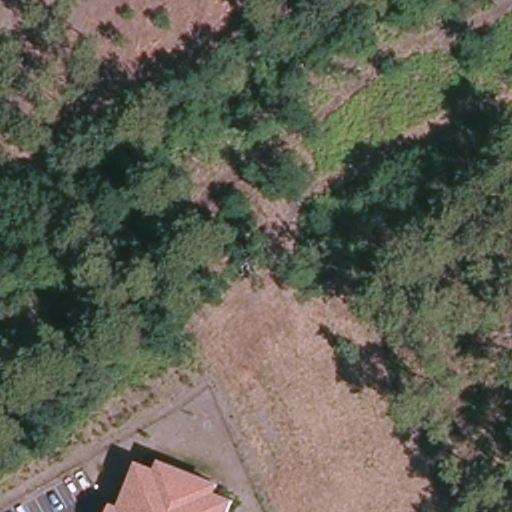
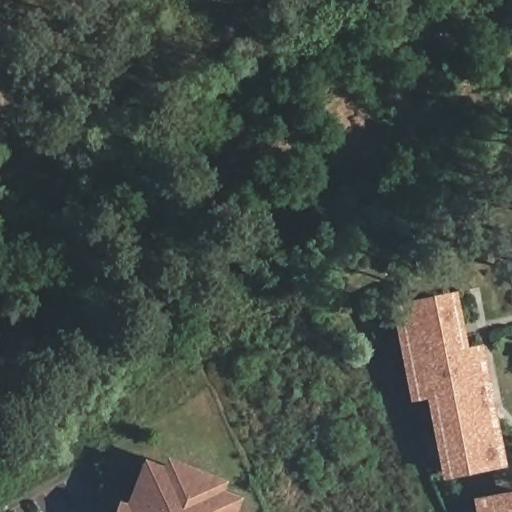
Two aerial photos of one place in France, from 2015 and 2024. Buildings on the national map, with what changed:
new [(452,292),(462,348),(480,345),(504,467),(437,479),(422,399),(407,402),(388,304),(452,292)]
unchanged [(124,505),(141,459),(160,467),(163,457),(224,482),(220,491),(238,498),(232,512),(111,512),(115,502),(124,505)]
new [(472,512),(470,498),(512,490),(512,512),(472,512)]

